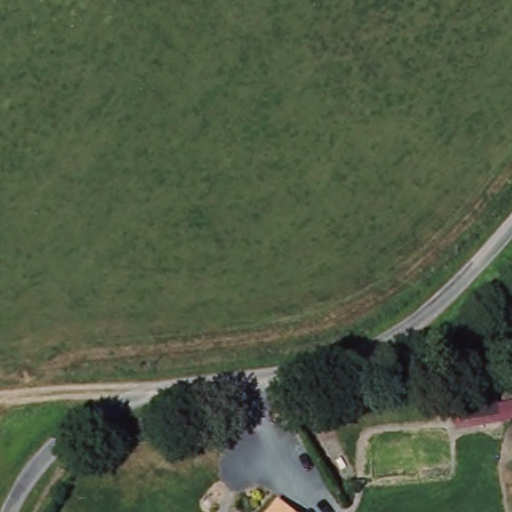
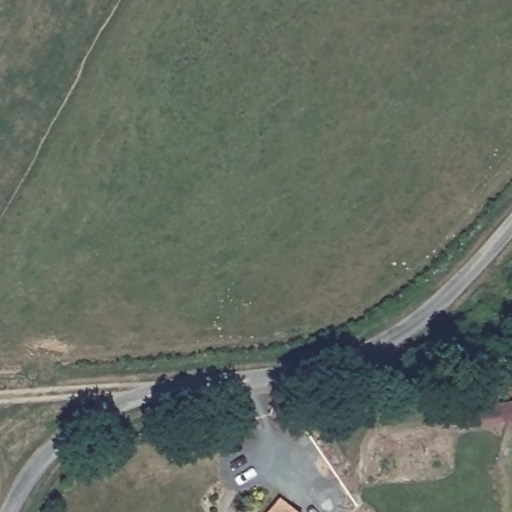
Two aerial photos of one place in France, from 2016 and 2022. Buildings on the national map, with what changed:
unchanged [(499,390),(505,420),(461,427),(455,400),(499,390)]
unchanged [(304,512),(271,512),(286,496),(304,512)]

